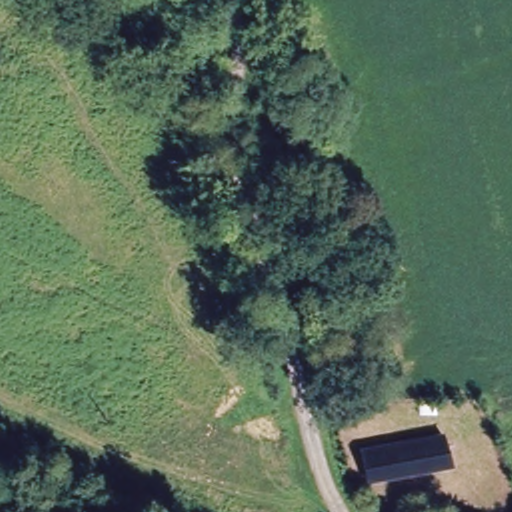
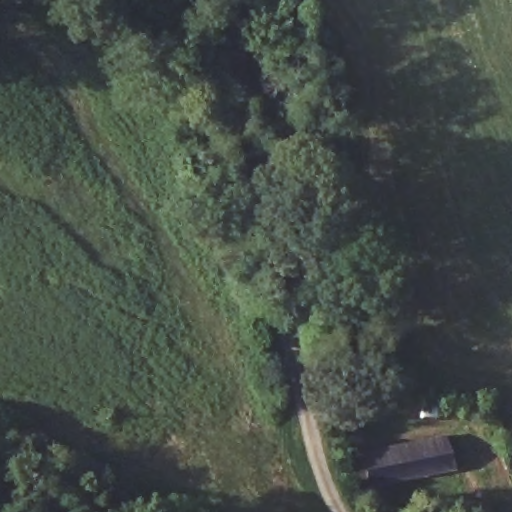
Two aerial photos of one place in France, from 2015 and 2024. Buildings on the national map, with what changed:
unchanged [(442,433),(453,463),(455,468),(377,488),(366,454),(442,433)]

